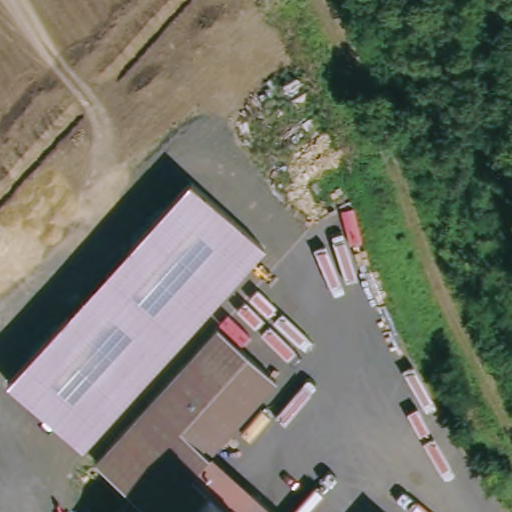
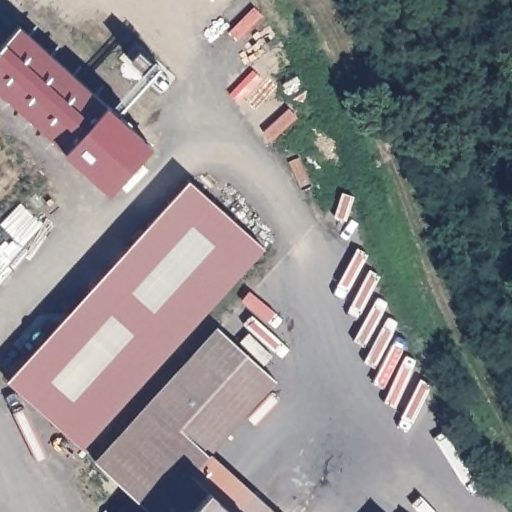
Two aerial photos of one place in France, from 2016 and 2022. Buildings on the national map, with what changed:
new [(0,91),(0,31),(6,37),(18,23),(107,102),(150,142),(107,188),(63,149),(0,91)]
unchanged [(265,250),(83,446),(8,378),(188,178),(265,250)]
unchanged [(222,330),(283,382),(213,457),(277,512),(141,512),(96,464),(222,330)]

